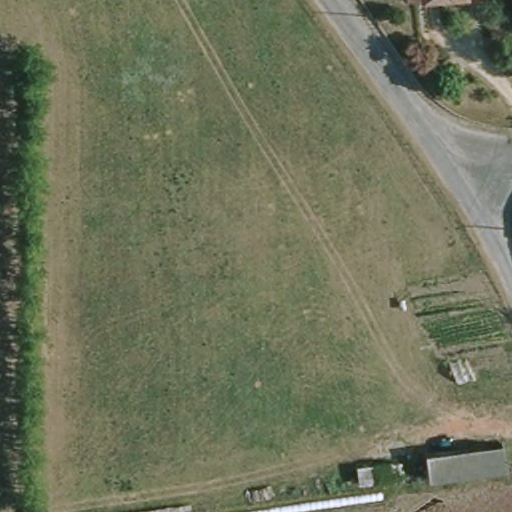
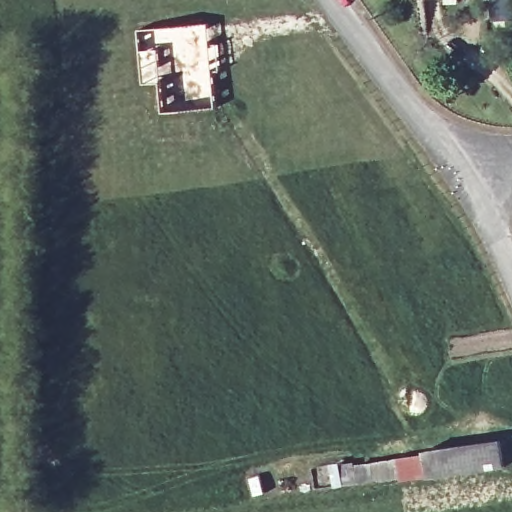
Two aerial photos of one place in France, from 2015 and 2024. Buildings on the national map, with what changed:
unchanged [(509,437),(512,451),(512,464),(500,466),(438,473),(432,449),(499,439),(509,437)]

